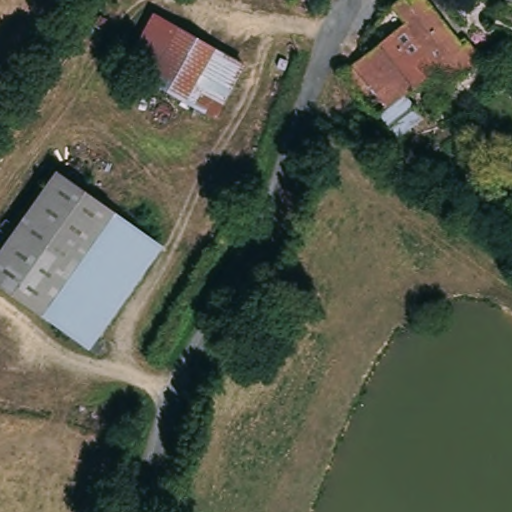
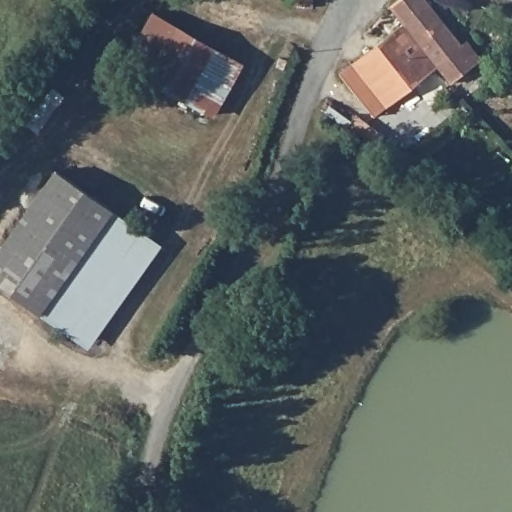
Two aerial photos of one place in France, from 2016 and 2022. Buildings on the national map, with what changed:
unchanged [(318,0),(317,6),(314,6),(302,5),(303,0),(318,0)]
unchanged [(449,83),(438,67),(430,74),(374,113),(343,73),(345,68),(405,24),(400,18),(392,8),(395,6),(403,0),(425,0),(428,4),(462,45),(468,40),(480,57),(449,83)]
unchanged [(155,13),(217,49),(185,101),(184,100),(125,65),(155,13)]
unchanged [(217,49),(245,65),(215,117),(185,101),(217,49)]
unchanged [(402,149),(395,140),(374,113),(430,74),(451,97),(428,114),(435,125),(402,149)]
unchanged [(351,114),(365,123),(382,137),(377,142),(372,147),(351,130),(345,125),(343,124),(351,114)]
unchanged [(63,173),(160,247),(89,348),(42,314),(63,284),(10,250),(63,173)]
unchanged [(0,283),(0,262),(10,250),(63,284),(42,314),(0,283)]

